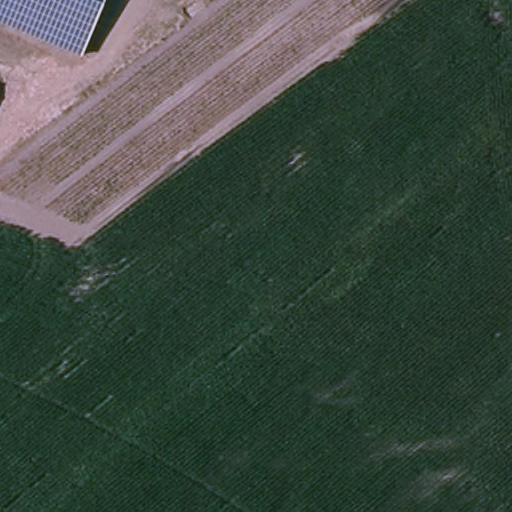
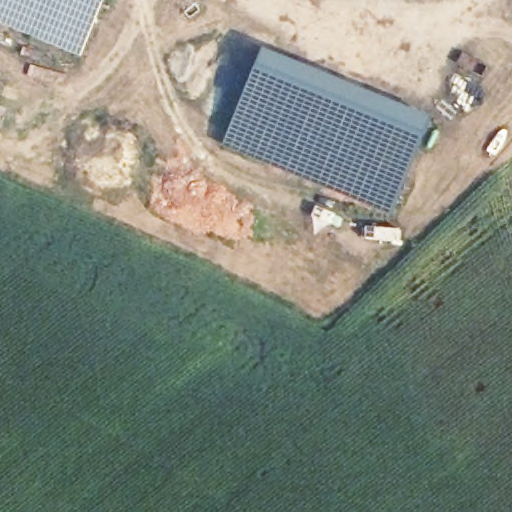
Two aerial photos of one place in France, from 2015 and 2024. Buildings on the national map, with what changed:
unchanged [(0,22),(0,0),(105,0),(82,56),(0,22)]
new [(262,57),(432,126),(393,220),(225,151),(262,57)]

